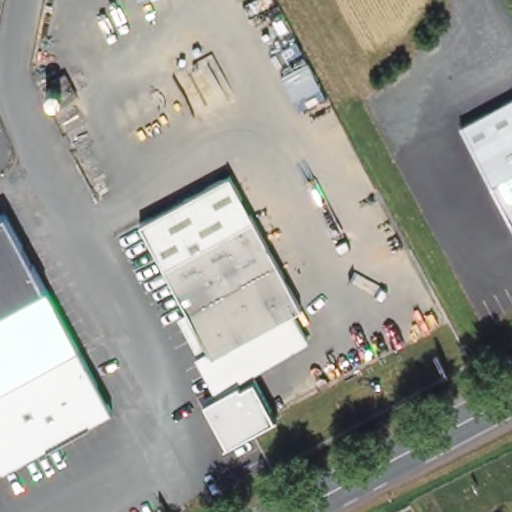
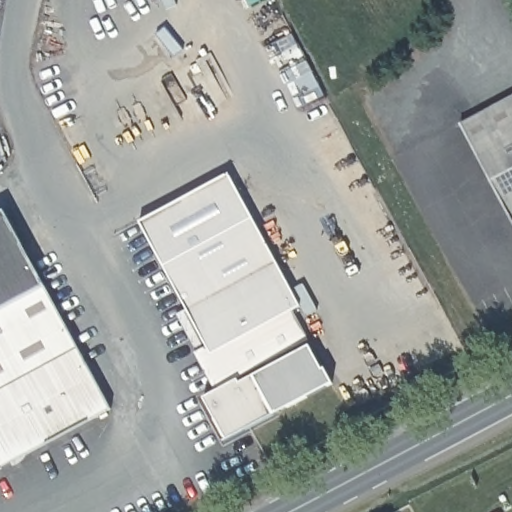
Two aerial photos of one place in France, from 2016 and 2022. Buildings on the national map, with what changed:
unchanged [(76,98),(63,105),(60,100),(56,102),(52,104),(49,104),(45,100),(44,96),(46,92),(49,89),(53,87),(51,83),(64,76),(76,98)]
unchanged [(512,95),(512,208),(465,121),(512,95)]
unchanged [(208,343),(143,220),(234,173),(303,306),(293,311),(310,340),(250,373),(219,391),(197,352),(208,343)]
unchanged [(49,287),(116,409),(0,470),(0,216),(7,212),(49,287)]
new [(322,370),(323,370),(330,385),(276,417),(250,373),(306,342),(322,370)]
unchanged [(219,391),(250,373),(276,417),(227,445),(204,401),(219,391)]

